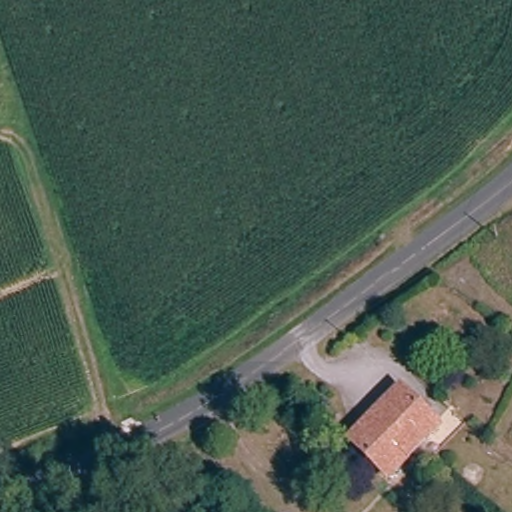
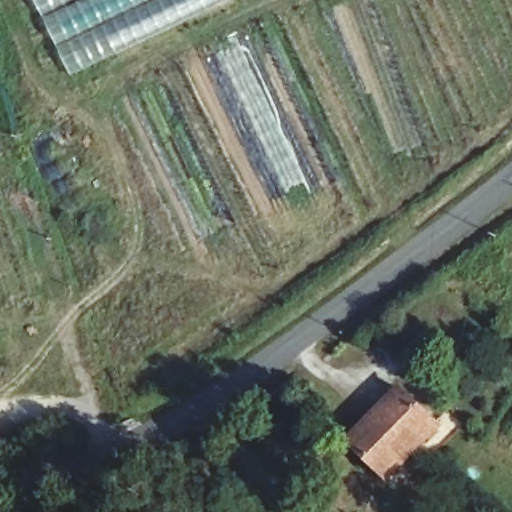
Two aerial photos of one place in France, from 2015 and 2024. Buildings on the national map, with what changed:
new [(72,76),(36,0),(229,0),(72,76)]
unchanged [(394,402),(429,436),(396,471),(391,463),(358,435),(392,400),(394,402)]

